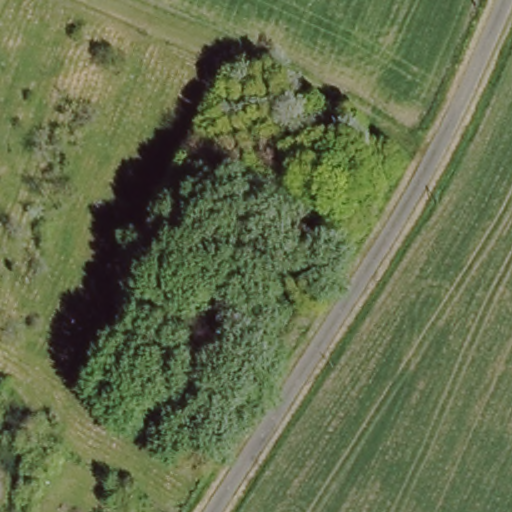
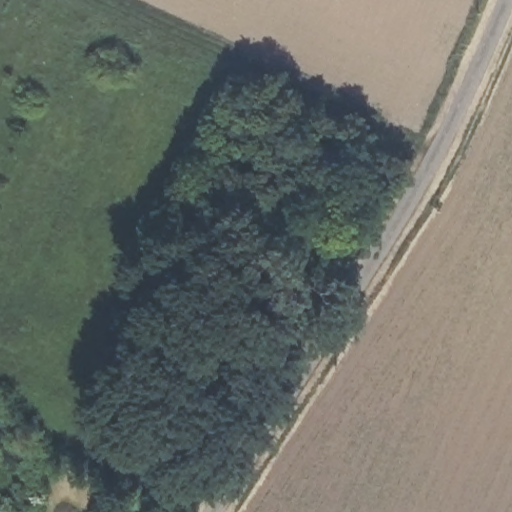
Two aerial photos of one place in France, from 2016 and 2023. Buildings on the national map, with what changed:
[]

